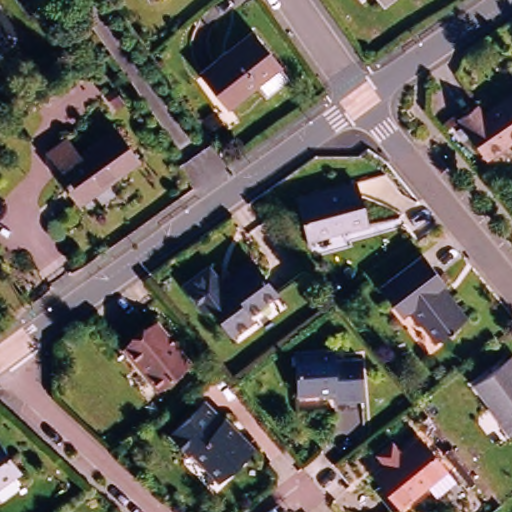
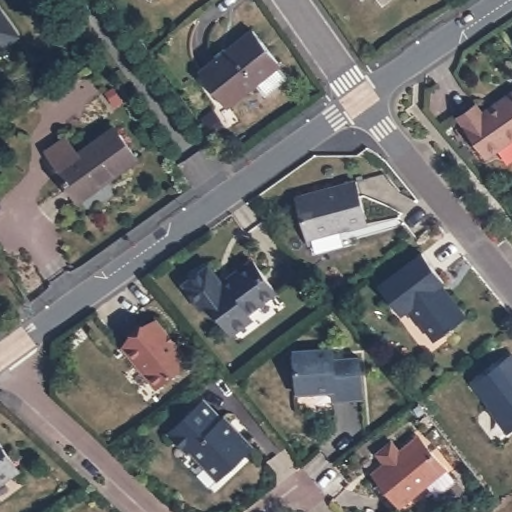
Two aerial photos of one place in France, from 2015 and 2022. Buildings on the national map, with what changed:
unchanged [(382,3),(379,0),(386,0),(382,3)]
unchanged [(7,15),(22,37),(0,54),(0,6),(7,15)]
unchanged [(258,94),(248,82),(220,104),(194,72),(245,32),(272,64),(281,76),(258,94)]
unchanged [(457,115),(476,102),(483,111),(512,88),(512,135),(488,153),(457,115)]
unchanged [(76,199),(52,168),(56,165),(45,151),(62,139),(73,154),(110,127),(132,158),(76,199)]
unchanged [(362,225),(343,230),(342,226),(302,238),(292,199),(352,183),(362,225)]
unchanged [(452,327),(453,330),(445,336),(443,333),(433,340),(419,323),(417,324),(406,310),(400,315),(379,288),(422,254),(443,282),(440,285),(465,317),(452,327)]
unchanged [(204,299),(197,304),(182,286),(205,267),(220,286),(250,262),(276,293),(247,316),(252,322),(233,336),(204,299)]
unchanged [(142,378),(119,349),(153,322),(185,362),(156,386),(152,390),(142,378)]
unchanged [(363,403),(335,404),(335,394),(300,395),(299,352),(335,351),(336,361),(362,360),(363,403)]
unchanged [(470,386),(508,357),(512,362),(512,426),(505,431),(470,386)]
unchanged [(225,480),(212,466),(209,465),(196,452),(192,454),(173,434),(206,404),(225,423),(228,419),(257,449),(225,480)]
unchanged [(432,495),(423,484),(396,503),(370,471),(384,461),(376,450),(390,440),(397,450),(418,435),(443,469),(451,481),(432,495)]
unchanged [(15,469),(0,480),(0,449),(15,469)]

